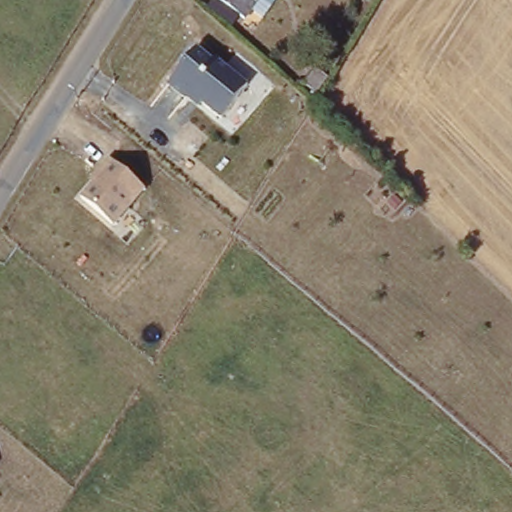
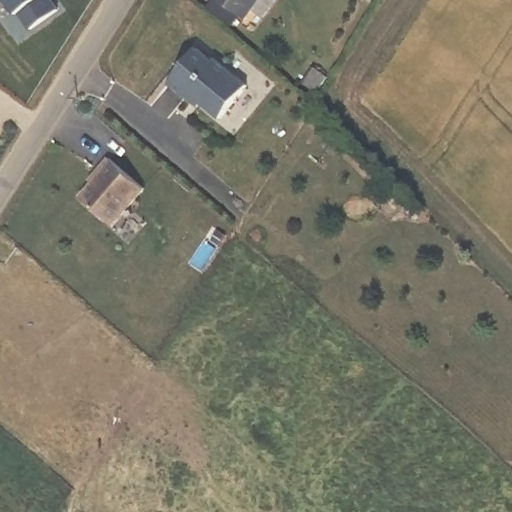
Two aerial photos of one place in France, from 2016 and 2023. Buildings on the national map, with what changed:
new [(29,29),(8,0),(53,0),(58,7),(29,29)]
unchanged [(216,0),(259,0),(246,19),(216,0)]
unchanged [(248,90),(223,120),(173,79),(196,47),(248,90)]
unchanged [(145,189),(111,222),(79,190),(112,157),(145,189)]

